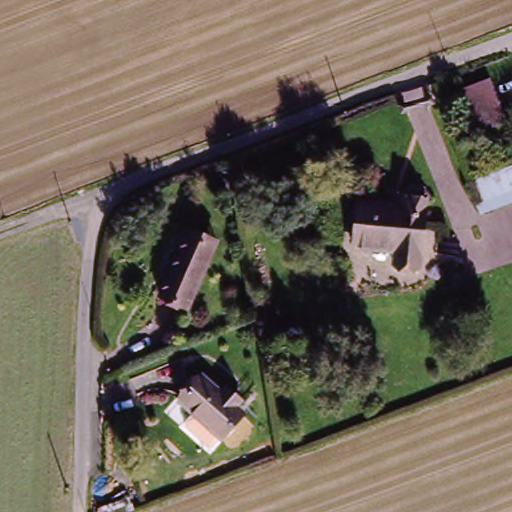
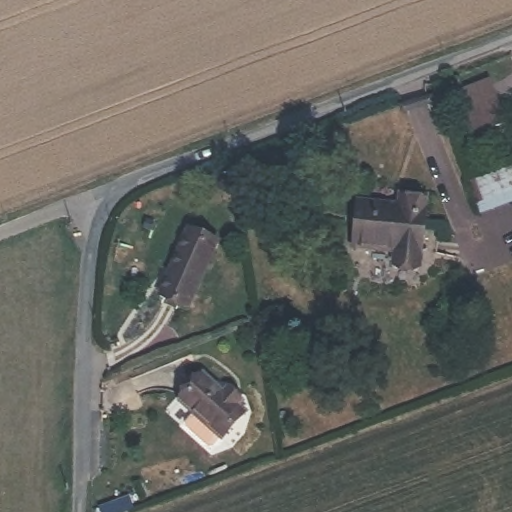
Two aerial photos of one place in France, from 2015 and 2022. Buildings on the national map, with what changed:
unchanged [(485,81),(502,125),(473,135),(457,92),(485,81)]
unchanged [(475,207),(482,203),(472,180),(512,163),(512,202),(478,215),(475,207)]
unchanged [(420,268),(392,267),(394,253),(354,250),(359,205),(399,207),(401,196),(425,196),(420,268)]
unchanged [(157,294),(184,237),(187,230),(214,241),(210,248),(184,305),(157,294)]
unchanged [(212,436),(172,403),(200,373),(217,389),(224,384),(238,395),(232,401),(241,408),(212,436)]

